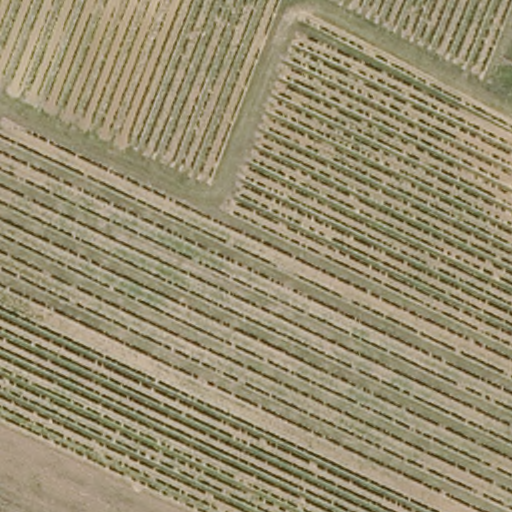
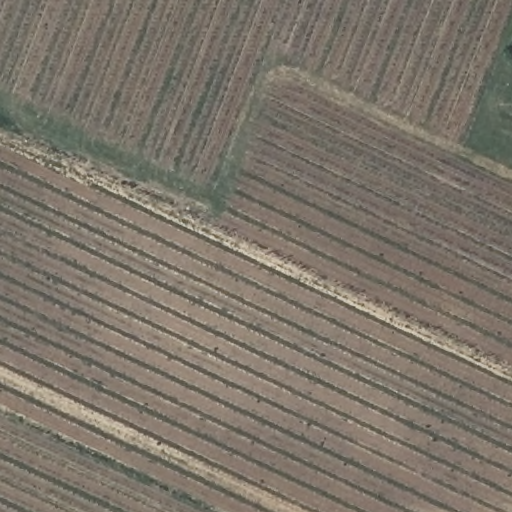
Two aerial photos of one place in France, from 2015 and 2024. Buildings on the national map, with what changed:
[]

